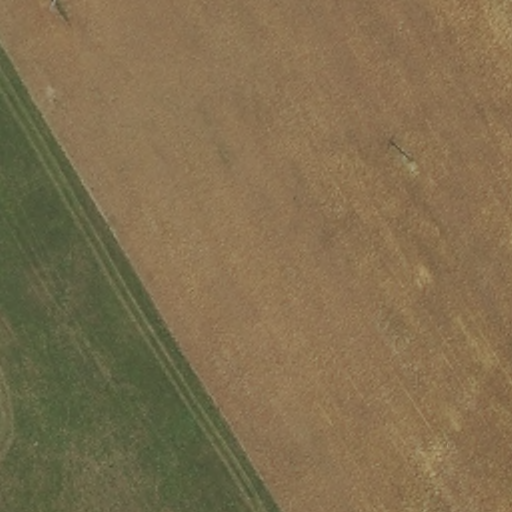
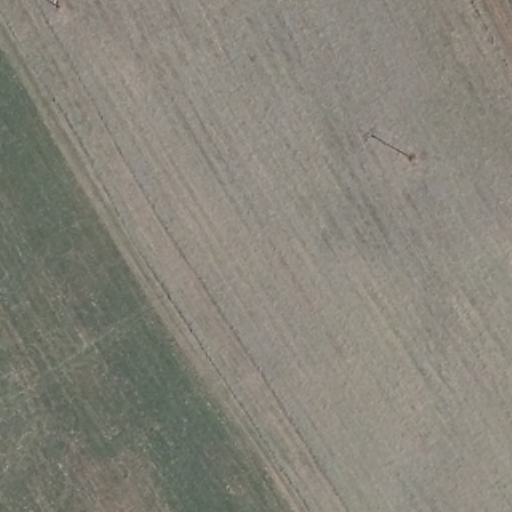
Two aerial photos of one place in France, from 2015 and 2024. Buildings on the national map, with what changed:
[]

